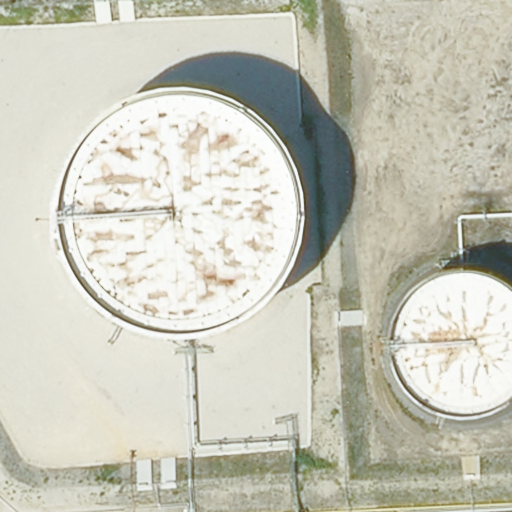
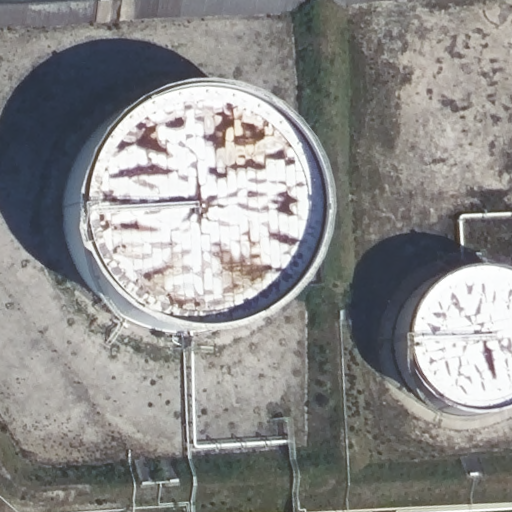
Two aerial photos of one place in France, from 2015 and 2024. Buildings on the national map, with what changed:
[]

